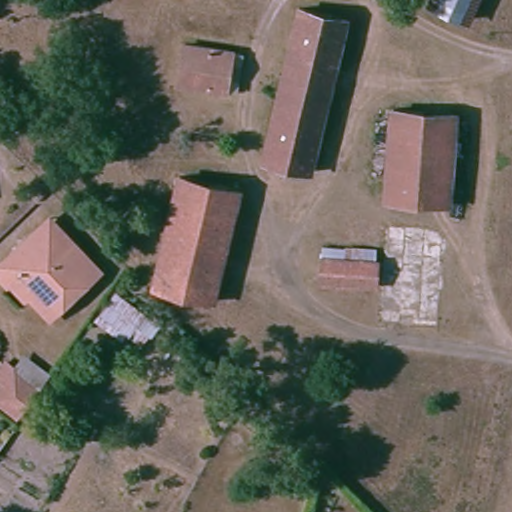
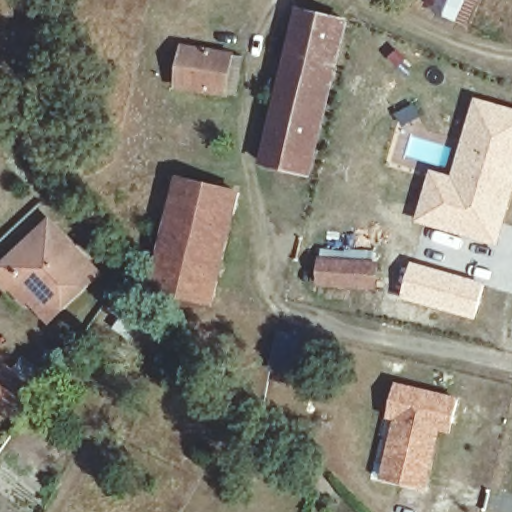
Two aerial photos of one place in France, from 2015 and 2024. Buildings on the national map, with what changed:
unchanged [(434,0),(475,0),(467,21),(432,5),(434,0)]
unchanged [(311,165),(264,152),(301,5),(348,15),(311,165)]
unchanged [(230,94),(174,85),(181,45),(236,54),(230,94)]
new [(431,169),(451,174),(475,97),(512,108),(512,196),(497,246),(414,221),(431,169)]
demolished [(446,207),(388,201),(397,110),(452,114),(446,207)]
unchanged [(209,305),(156,290),(181,179),(235,192),(209,305)]
unchanged [(16,285),(10,290),(0,279),(0,269),(22,247),(47,221),(62,235),(89,263),(40,311),(16,285)]
unchanged [(375,285),(322,281),(325,252),(377,256),(375,285)]
new [(412,261),(486,283),(476,320),(401,298),(412,261)]
unchanged [(89,263),(102,276),(51,323),(40,311),(89,263)]
unchanged [(0,388),(0,370),(6,361),(17,370),(27,357),(52,378),(42,390),(49,395),(23,428),(0,409),(0,391),(2,389),(0,388)]
new [(392,421),(385,420),(395,381),(458,396),(450,434),(441,432),(427,490),(380,479),(392,421)]

